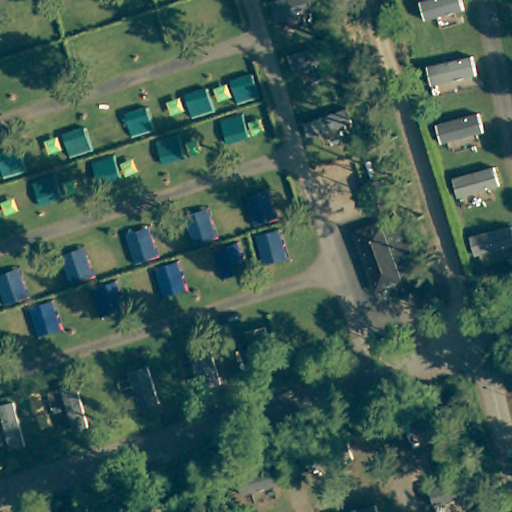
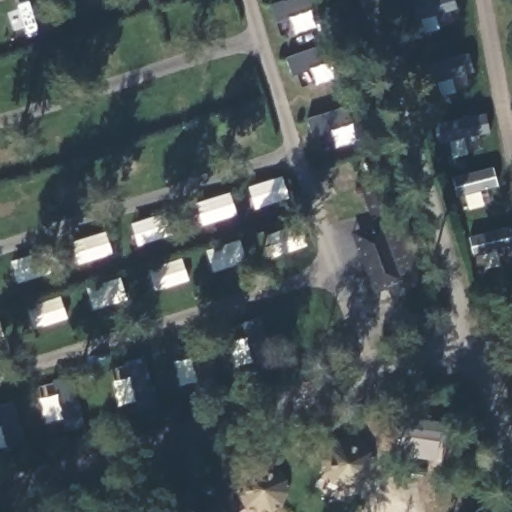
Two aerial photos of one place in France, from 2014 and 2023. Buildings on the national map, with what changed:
unchanged [(365,229),(377,225),(397,218),(417,282),(398,288),(385,293),(365,229)]

